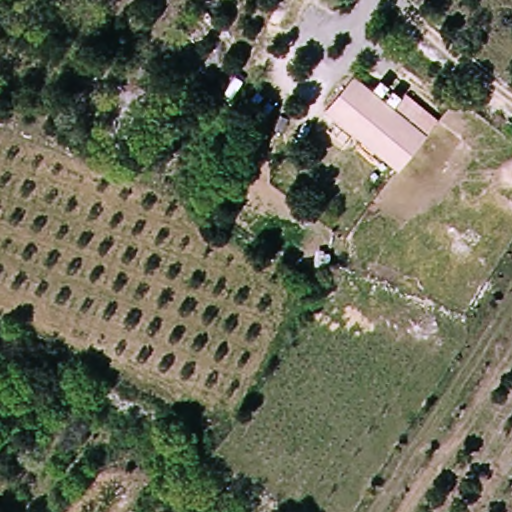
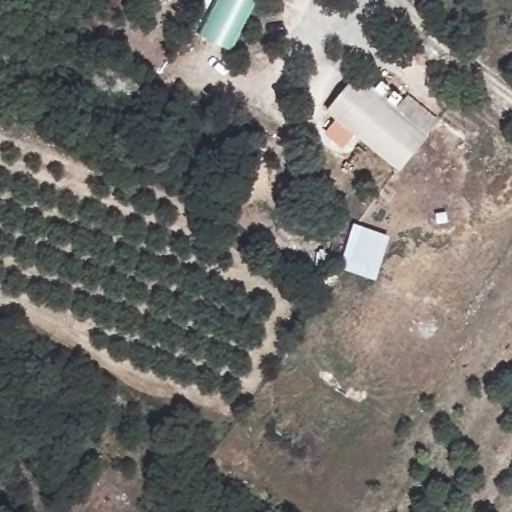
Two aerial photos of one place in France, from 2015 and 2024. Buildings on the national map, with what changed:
new [(215,0),(258,0),(232,50),(198,32),(215,0)]
unchanged [(331,111),(356,79),(396,110),(409,95),(441,119),(428,135),(404,167),(331,111)]
new [(391,235),(376,280),(340,267),(354,223),(391,235)]

